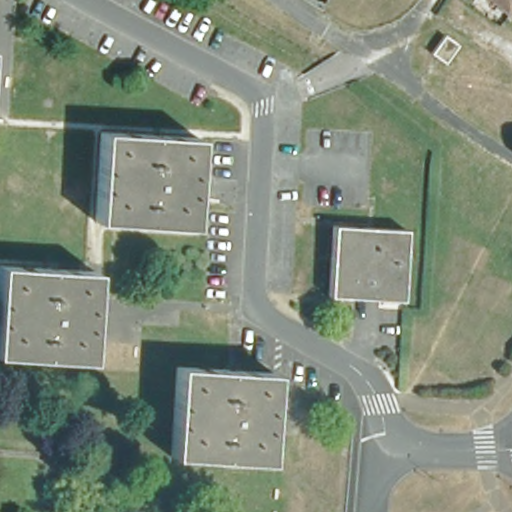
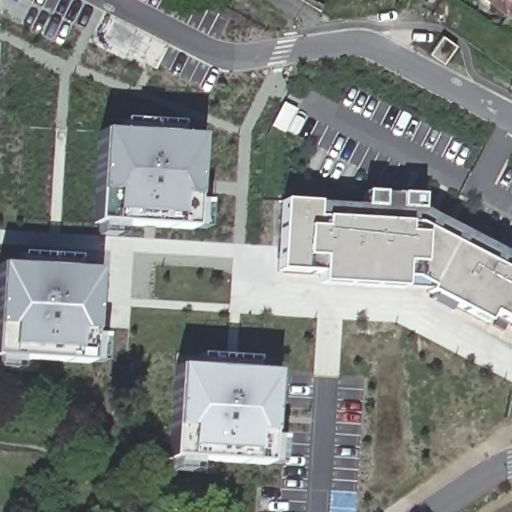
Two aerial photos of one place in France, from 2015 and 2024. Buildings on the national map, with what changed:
unchanged [(512,0),(512,9),(501,0),(512,0)]
unchanged [(447,54),(433,46),(445,27),(459,36),(447,54)]
unchanged [(196,140),(190,229),(95,224),(100,135),(196,140)]
new [(364,202),(364,189),(422,191),(421,206),(512,253),(512,320),(491,308),(485,317),(430,288),(431,285),(416,274),(404,274),(404,284),(324,279),(324,270),(280,267),(283,196),(292,198),(364,202)]
demolished [(400,300),(329,298),(331,229),(402,232),(400,300)]
unchanged [(92,268),(88,358),(0,355),(0,264),(92,268)]
unchanged [(272,374),(268,464),(172,460),(176,370),(272,374)]

